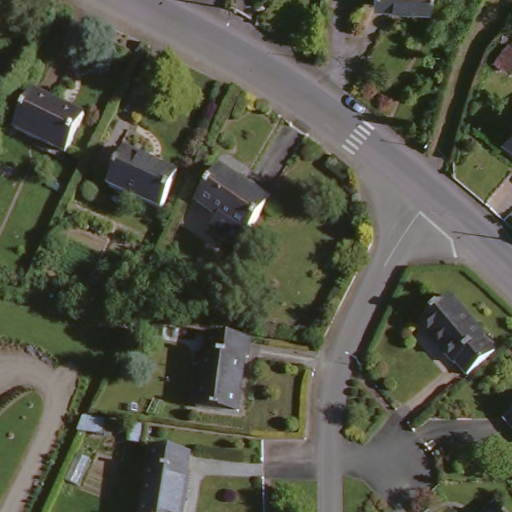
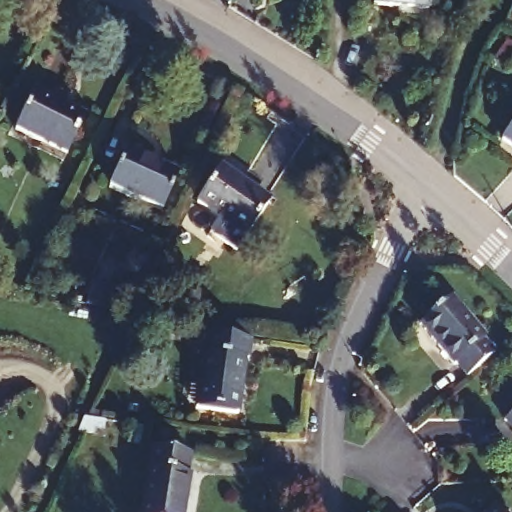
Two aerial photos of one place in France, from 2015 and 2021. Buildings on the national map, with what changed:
unchanged [(368,0),(423,0),(423,12),(368,10),(368,0)]
unchanged [(504,41),(512,47),(512,57),(505,69),(492,60),(504,41)]
unchanged [(11,136),(30,99),(80,125),(62,159),(11,136)]
unchanged [(512,125),(512,153),(499,143),(512,125)]
unchanged [(109,190),(124,156),(178,180),(162,215),(109,190)]
unchanged [(210,235),(219,223),(195,206),(220,171),(271,207),(237,255),(210,235)]
unchanged [(89,282),(114,289),(111,306),(85,300),(89,282)]
unchanged [(453,371),(448,368),(417,332),(449,305),(494,359),(464,385),(453,371)]
unchanged [(245,347),(243,370),(239,372),(233,422),(190,416),(203,339),(219,342),(245,347)]
unchanged [(506,427),(512,422),(512,435),(506,427)]
unchanged [(148,459),(152,440),(191,448),(189,467),(180,512),(138,512),(148,459)]
unchanged [(504,500),(512,508),(512,512),(490,512),(504,500)]

